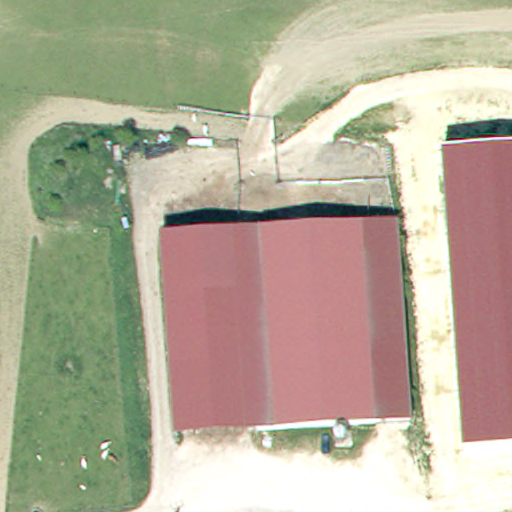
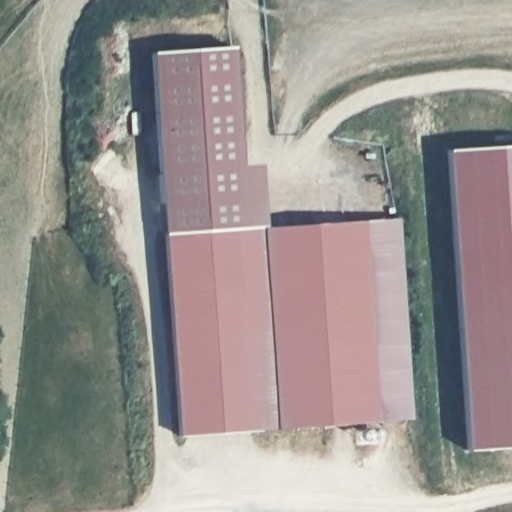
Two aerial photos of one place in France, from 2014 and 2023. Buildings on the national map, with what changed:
new [(246,229),(166,233),(150,52),(232,47),(240,164),(260,164),(263,227),(246,229)]
unchanged [(512,146),(512,445),(465,447),(444,151),(512,146)]
unchanged [(402,220),(411,420),(297,427),(284,226),(402,220)]
unchanged [(257,430),(246,229),(284,226),(297,427),(257,430)]
unchanged [(178,435),(166,233),(246,229),(257,430),(178,435)]

